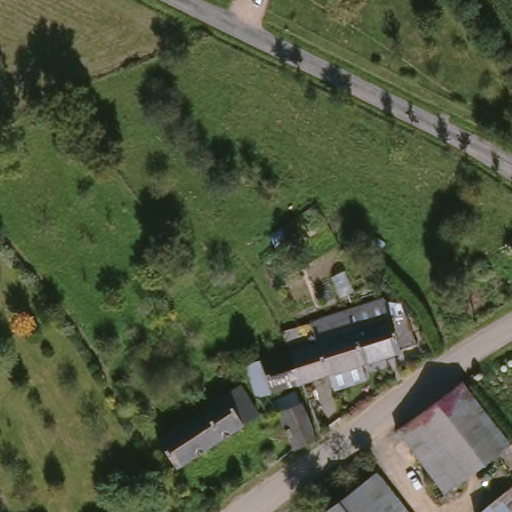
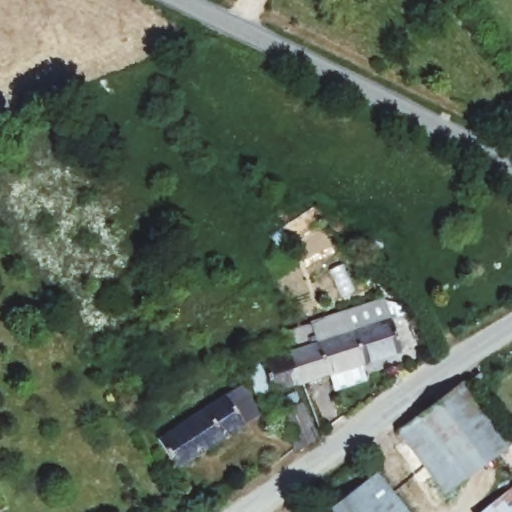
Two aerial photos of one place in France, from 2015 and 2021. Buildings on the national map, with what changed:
unchanged [(286,330),(388,294),(396,318),(295,354),(286,330)]
unchanged [(295,354),(396,318),(411,313),(421,348),(307,385),(295,354)]
unchanged [(258,380),(254,364),(265,360),(295,354),(307,385),(278,393),(265,398),(258,380)]
unchanged [(512,445),(512,447),(452,498),(434,479),(398,438),(459,387),(512,445)]
unchanged [(156,442),(168,434),(216,401),(226,395),(234,391),(254,418),(237,427),(176,470),(156,442)]
unchanged [(295,451),(281,411),(302,405),(314,441),(295,451)]
unchanged [(369,478),(398,512),(329,512),(369,478)]
unchanged [(512,494),(512,512),(490,512),(512,494)]

